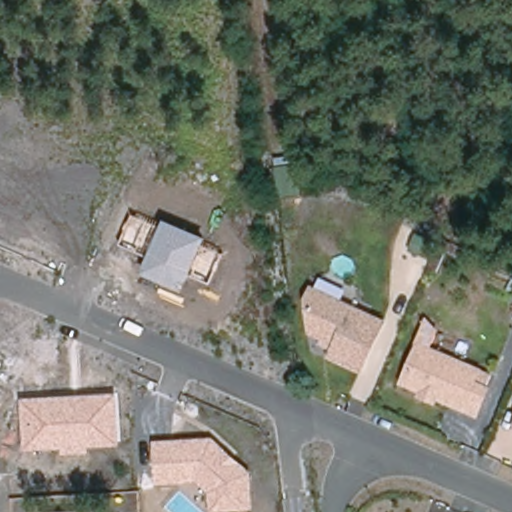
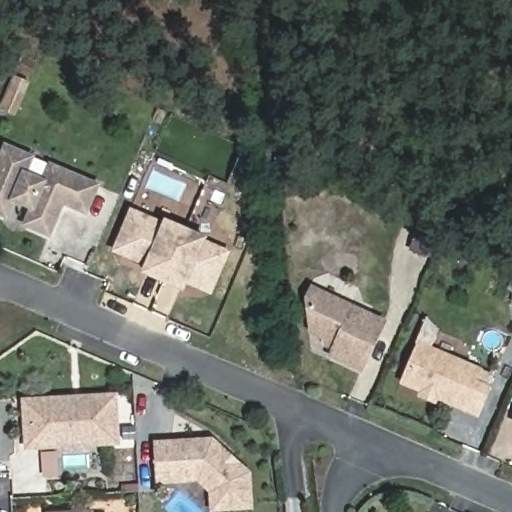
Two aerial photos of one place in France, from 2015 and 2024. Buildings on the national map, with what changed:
new [(22,225),(28,210),(14,204),(7,220),(0,216),(0,153),(4,142),(36,156),(33,162),(46,168),(50,161),(101,184),(87,215),(64,206),(49,237),(22,225)]
unchanged [(160,228),(164,220),(205,237),(202,245),(222,254),(210,284),(189,275),(181,290),(140,272),(146,257),(118,245),(132,215),(160,228)]
unchanged [(387,320),(359,370),(329,355),(332,342),(310,331),(312,285),(387,320)]
unchanged [(481,366),(478,379),(490,386),(475,415),(437,398),(435,402),(413,393),(414,390),(400,385),(421,341),(481,366)]
unchanged [(88,453),(62,455),(62,449),(24,450),(21,399),(116,392),(119,446),(87,447),(88,453)]
unchanged [(252,509),(215,512),(209,512),(207,491),(195,481),(155,485),(153,441),(213,437),(251,472),(252,509)]
unchanged [(92,512),(45,512),(45,511),(92,510),(92,512)]

